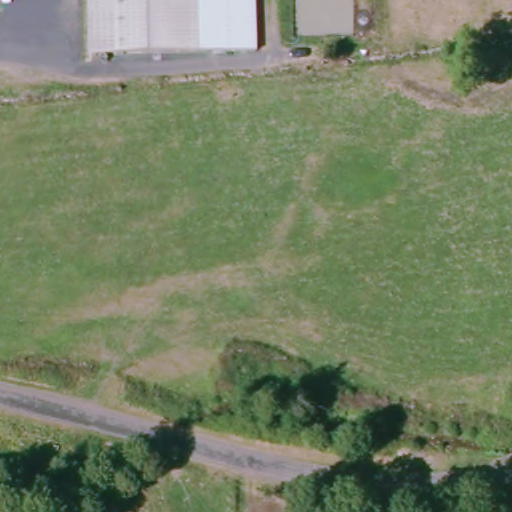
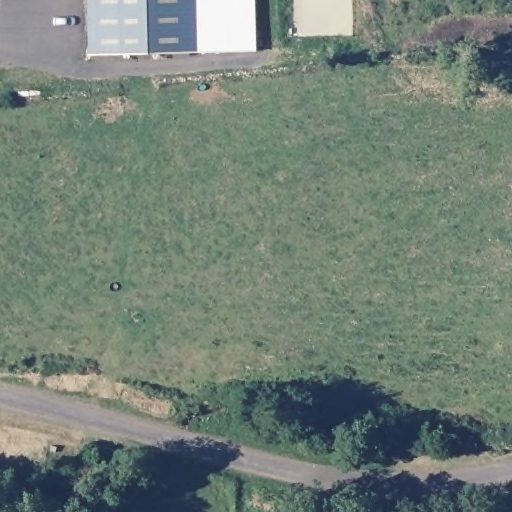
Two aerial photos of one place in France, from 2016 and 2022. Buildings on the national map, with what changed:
unchanged [(97,55),(96,0),(261,0),(262,50),(97,55)]

